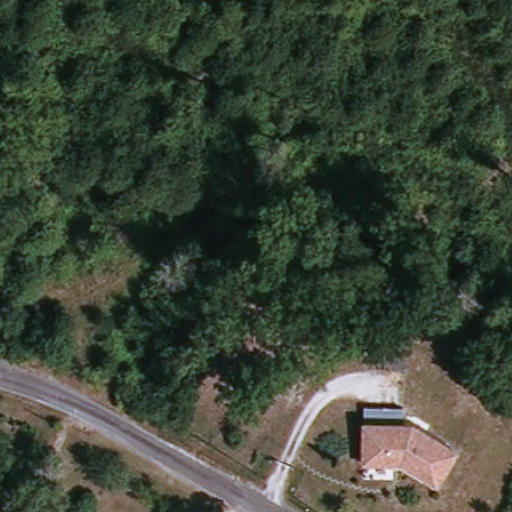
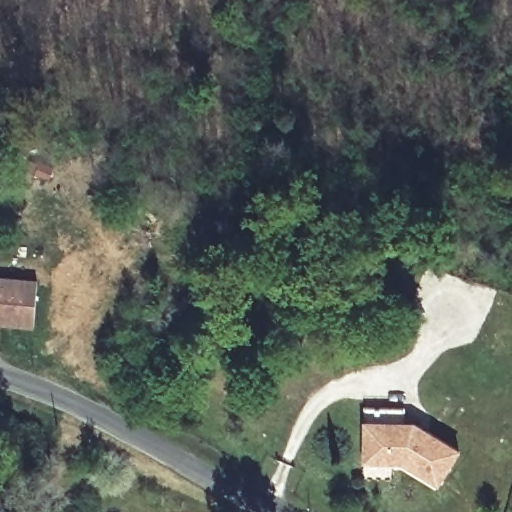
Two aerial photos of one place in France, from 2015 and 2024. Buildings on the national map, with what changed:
new [(34,326),(0,325),(0,278),(36,279),(34,326)]
unchanged [(375,421),(375,407),(411,409),(410,423),(422,424),(467,450),(447,485),(414,465),(372,463),(375,421)]

